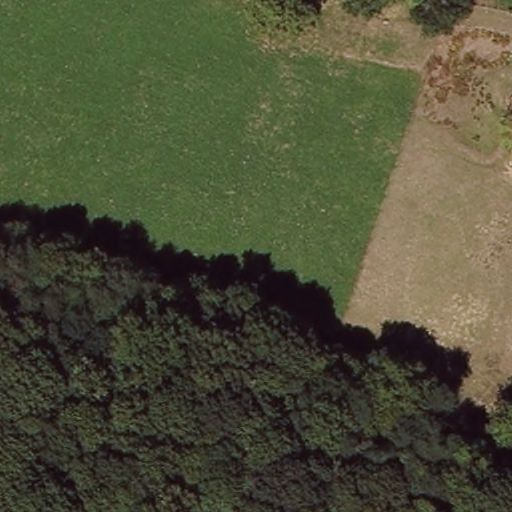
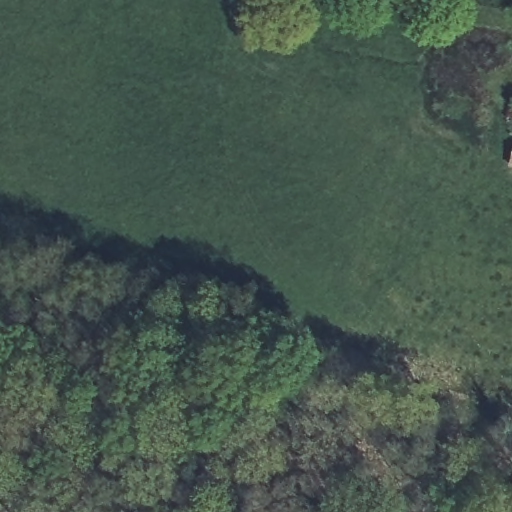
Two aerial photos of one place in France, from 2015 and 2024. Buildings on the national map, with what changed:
unchanged [(509,163),(512,154),(512,164),(509,163)]

